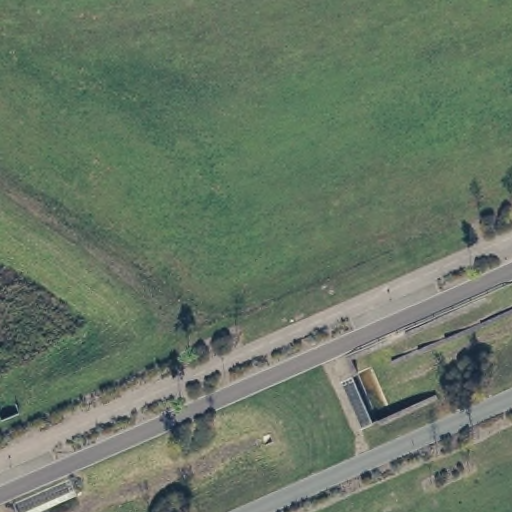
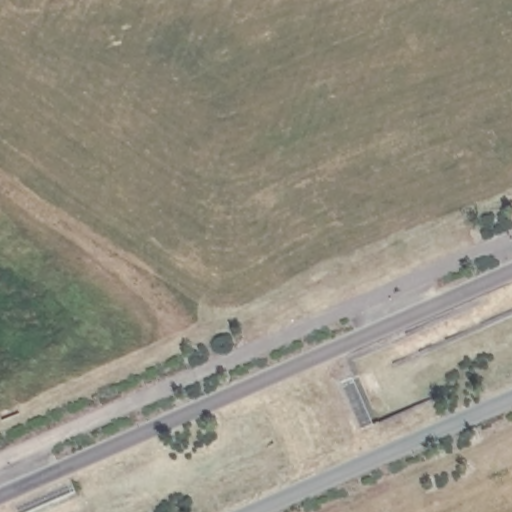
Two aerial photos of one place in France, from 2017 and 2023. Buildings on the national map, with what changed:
[]

